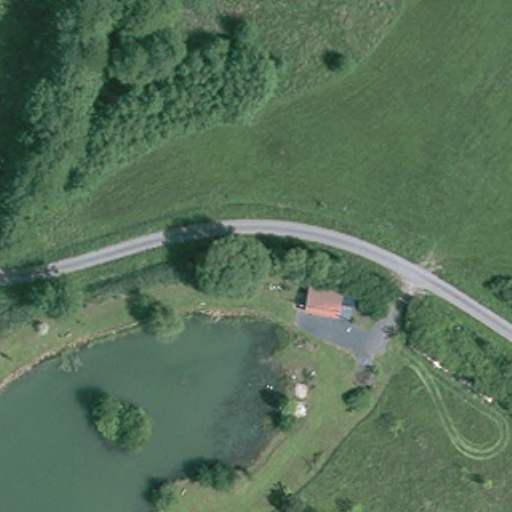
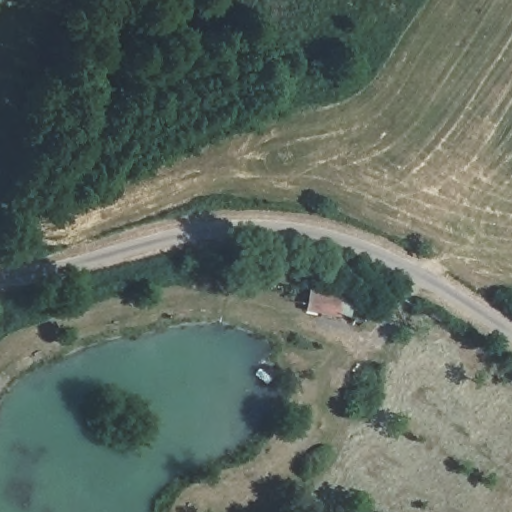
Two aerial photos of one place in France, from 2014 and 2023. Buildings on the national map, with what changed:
unchanged [(345,302),(338,324),(305,317),(311,293),(345,302)]

